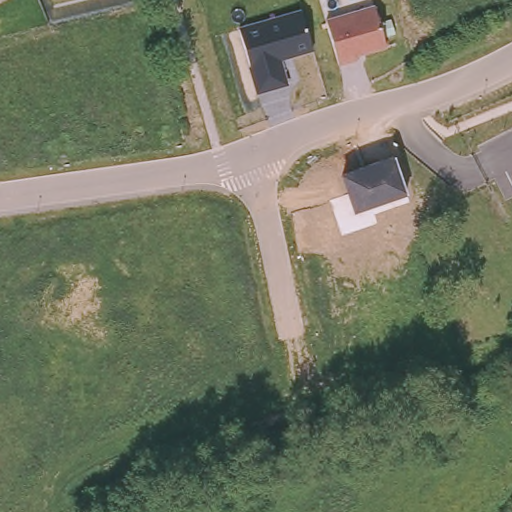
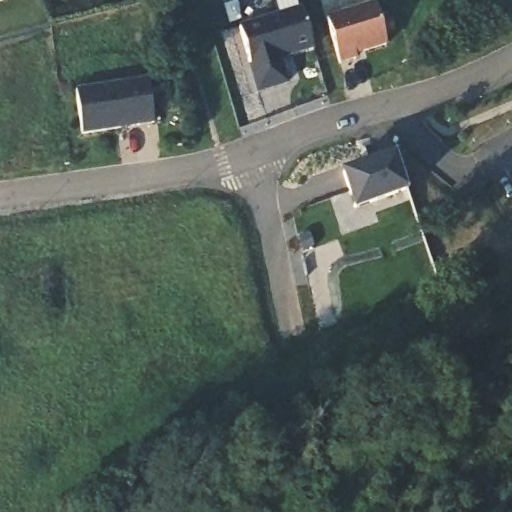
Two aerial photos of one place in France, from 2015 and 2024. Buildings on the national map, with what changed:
unchanged [(373,4),(386,45),(360,53),(361,56),(341,62),(326,19),(373,4)]
unchanged [(303,7),(313,49),(280,59),(288,84),(255,92),(238,25),(303,7)]
new [(146,82),(152,125),(80,136),(73,94),(146,82)]
unchanged [(393,155),(406,195),(352,213),(340,172),(393,155)]

